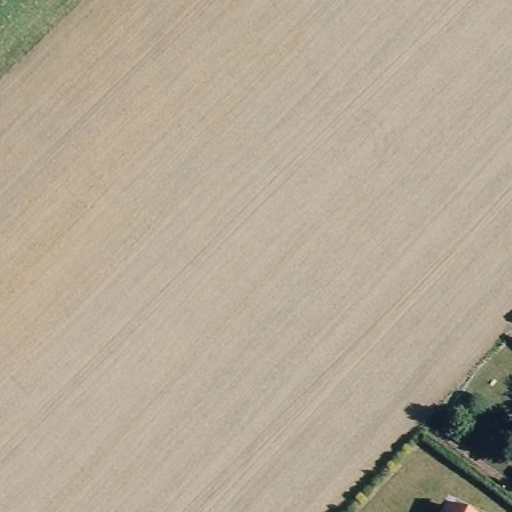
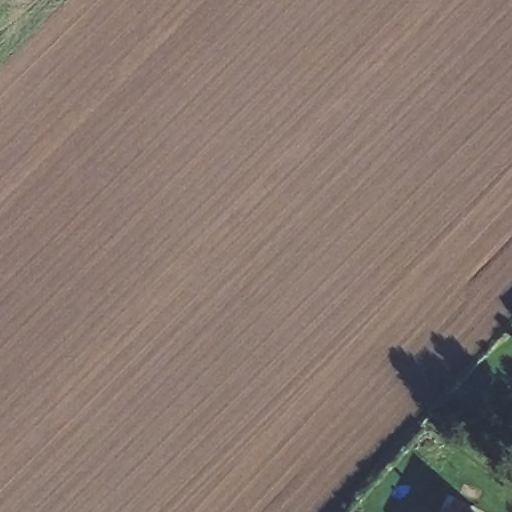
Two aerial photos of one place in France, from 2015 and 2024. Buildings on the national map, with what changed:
unchanged [(446,512),(448,508),(457,512),(446,512)]

